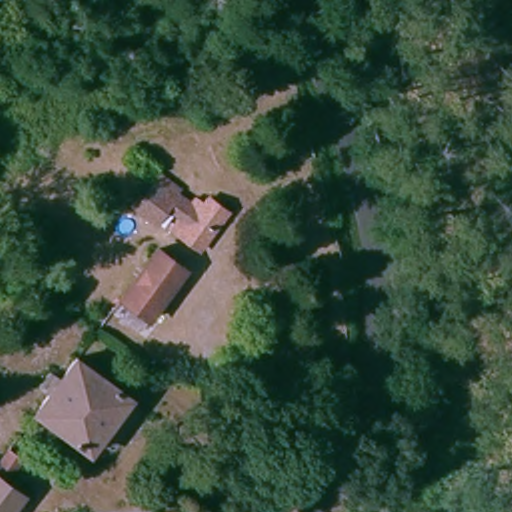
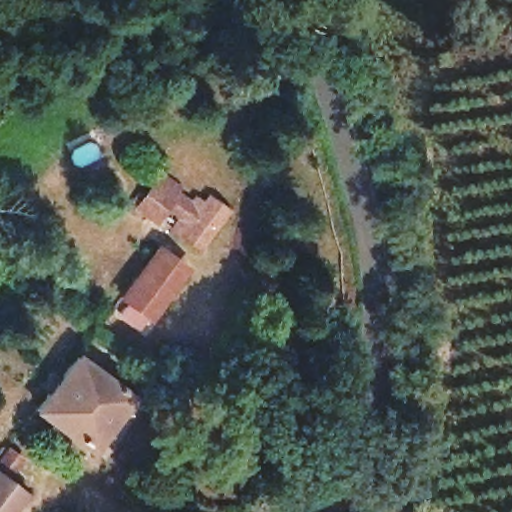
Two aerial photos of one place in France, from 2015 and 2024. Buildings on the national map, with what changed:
unchanged [(205,254),(173,231),(178,226),(165,218),(159,227),(133,211),(158,172),(186,187),(183,191),(193,197),(197,195),(205,201),(210,196),(233,214),(205,254)]
unchanged [(159,253),(188,275),(152,322),(124,301),(159,253)]
unchanged [(135,400),(93,453),(46,414),(60,395),(50,385),(60,371),(72,381),(87,363),(135,400)]
unchanged [(10,486),(24,498),(13,512),(0,512),(0,460),(8,450),(26,464),(10,486)]

